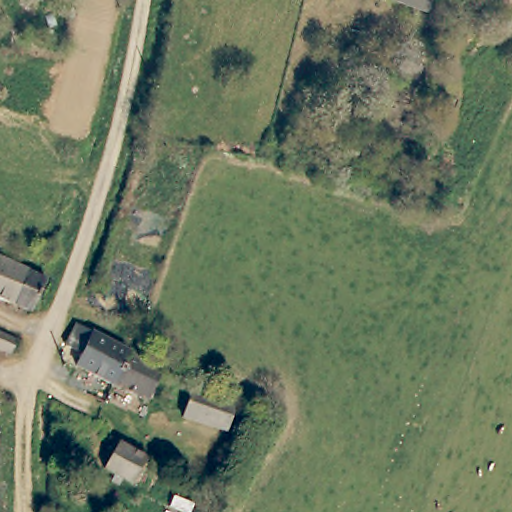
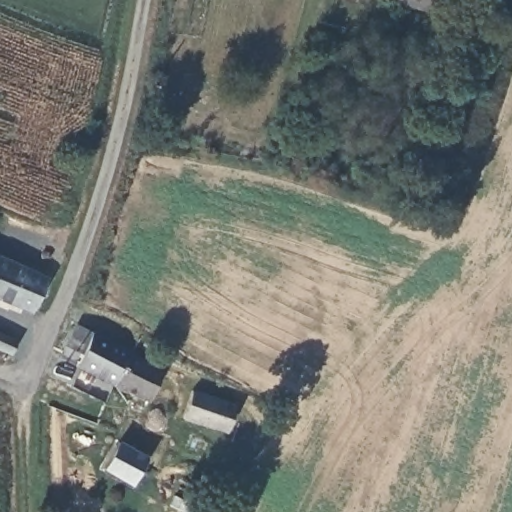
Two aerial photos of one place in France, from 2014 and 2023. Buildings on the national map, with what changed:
unchanged [(424,14),(384,0),(428,0),(424,14)]
unchanged [(0,298),(0,262),(45,280),(30,310),(0,298)]
unchanged [(133,354),(117,385),(81,367),(86,356),(71,350),(79,329),(133,354)]
unchanged [(0,350),(0,333),(14,339),(8,353),(0,350)]
unchanged [(133,354),(166,370),(151,401),(117,385),(133,354)]
unchanged [(225,431),(183,420),(189,393),(232,405),(225,431)]
unchanged [(113,475),(126,448),(155,465),(141,489),(113,475)]

